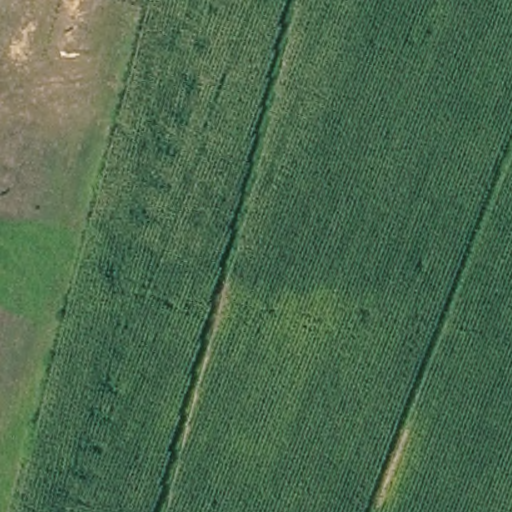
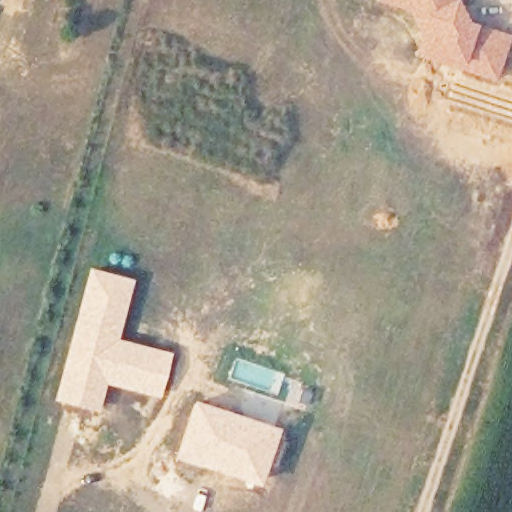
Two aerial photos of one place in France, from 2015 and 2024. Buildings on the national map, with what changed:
new [(511,34),(498,81),(415,55),(417,46),(417,36),(409,11),(375,0),(459,0),(468,20),(511,34)]
new [(173,354),(160,399),(107,385),(99,413),(54,401),(89,268),(135,280),(118,340),(173,354)]
new [(260,487),(173,460),(192,400),(279,428),(260,487)]

